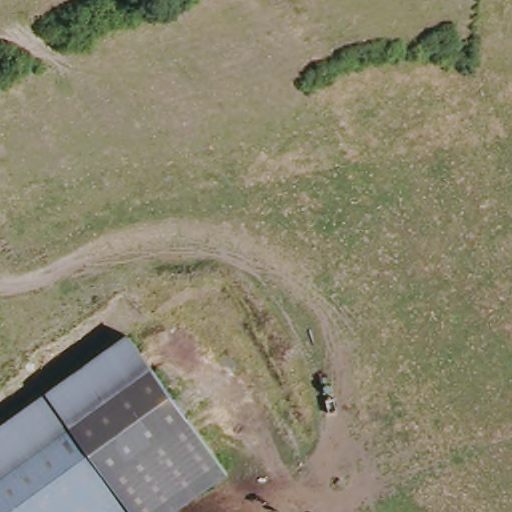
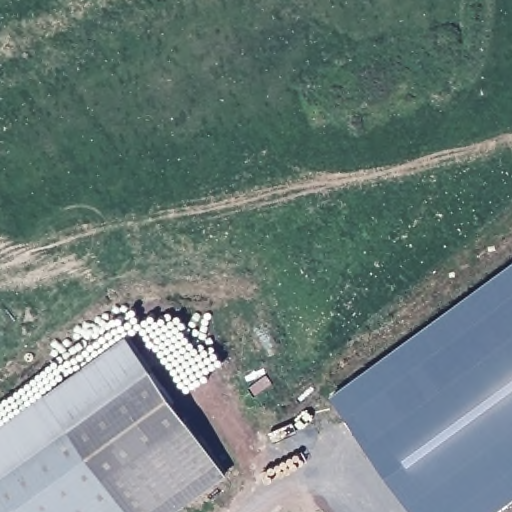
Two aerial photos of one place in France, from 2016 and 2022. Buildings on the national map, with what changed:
new [(420,512),(338,392),(512,271),(512,507),(506,512),(420,512)]
unchanged [(225,468),(168,512),(0,512),(0,437),(128,342),(225,468)]

